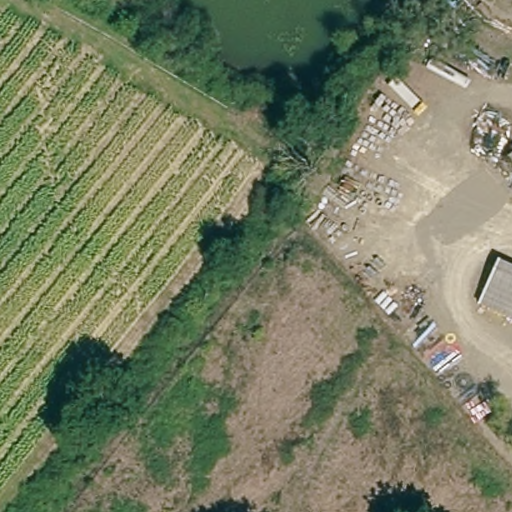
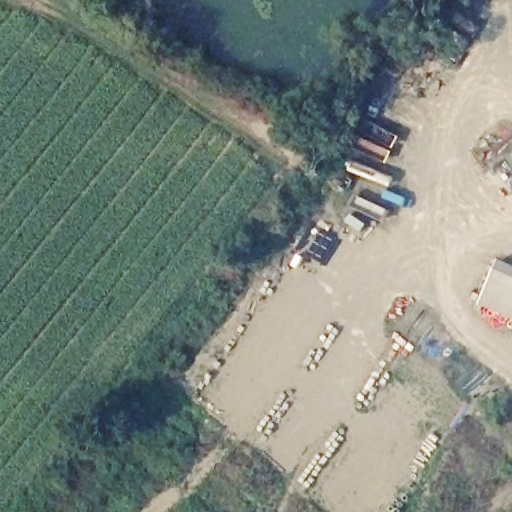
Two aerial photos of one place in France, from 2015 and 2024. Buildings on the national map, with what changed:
unchanged [(512,318),(480,303),(498,261),(512,267),(512,318)]

